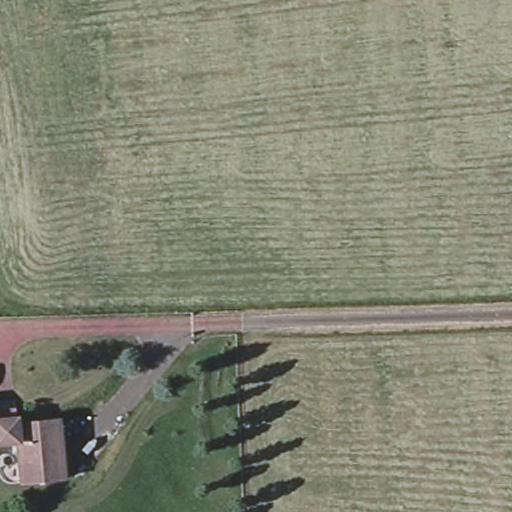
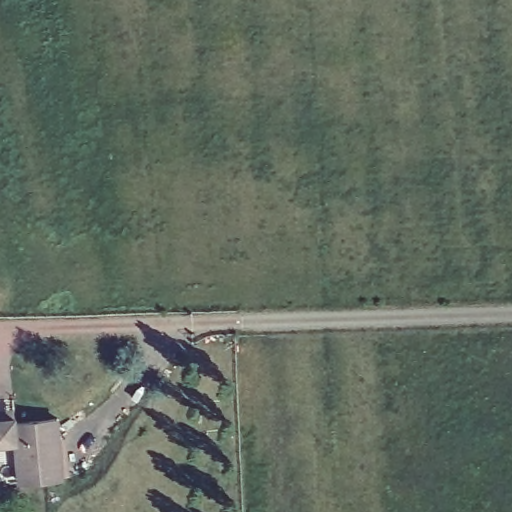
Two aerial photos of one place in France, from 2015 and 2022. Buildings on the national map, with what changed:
unchanged [(20,480),(17,439),(0,441),(0,416),(14,415),(15,420),(56,416),(62,475),(20,480)]

